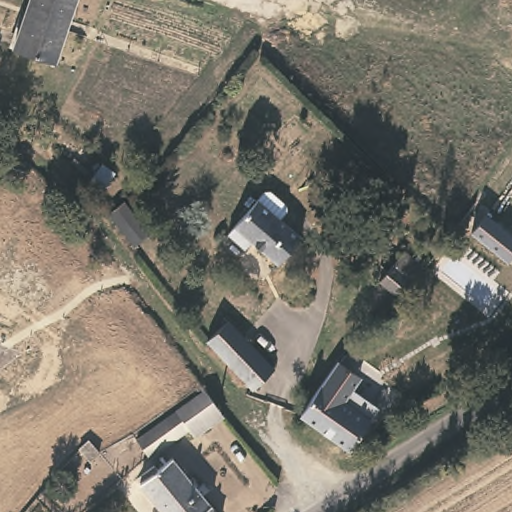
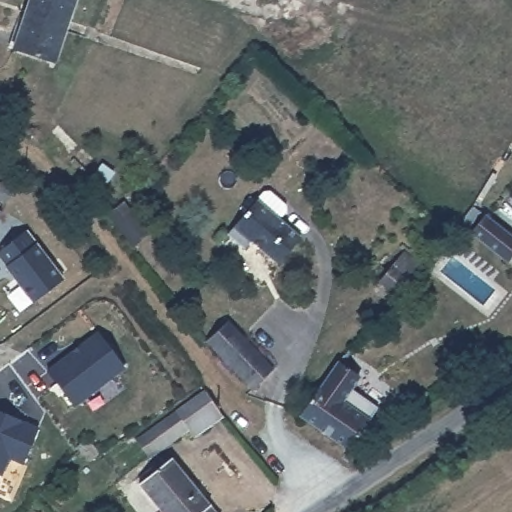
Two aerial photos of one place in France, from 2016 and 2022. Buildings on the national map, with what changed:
unchanged [(56,61),(13,48),(29,0),(75,0),(56,61)]
unchanged [(279,263),(250,240),(244,247),(227,232),(257,197),(263,190),(270,189),(285,202),(286,209),(280,216),(302,235),(279,263)]
new [(512,233),(512,255),(511,257),(471,233),(483,214),(512,233)]
new [(31,299),(0,255),(0,249),(25,230),(63,276),(31,299)]
unchanged [(423,265),(398,295),(378,279),(403,249),(423,265)]
unchanged [(276,364),(254,383),(206,334),(227,315),(276,364)]
new [(77,404),(49,367),(99,331),(126,366),(77,404)]
unchanged [(224,408),(194,432),(187,423),(148,450),(136,432),(205,385),(224,408)]
unchanged [(340,402),(350,391),(380,411),(348,452),(322,433),(299,417),(322,390),(340,402)]
new [(25,459),(11,453),(4,473),(0,472),(0,411),(37,426),(25,459)]
unchanged [(98,447),(86,456),(78,450),(88,439),(98,447)]
unchanged [(153,512),(163,505),(141,476),(172,451),(221,512),(153,512)]

